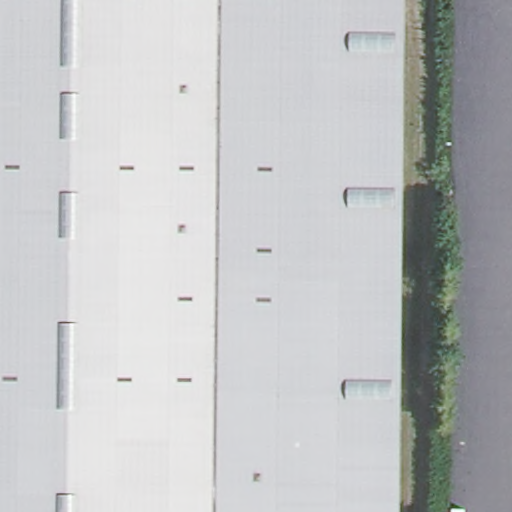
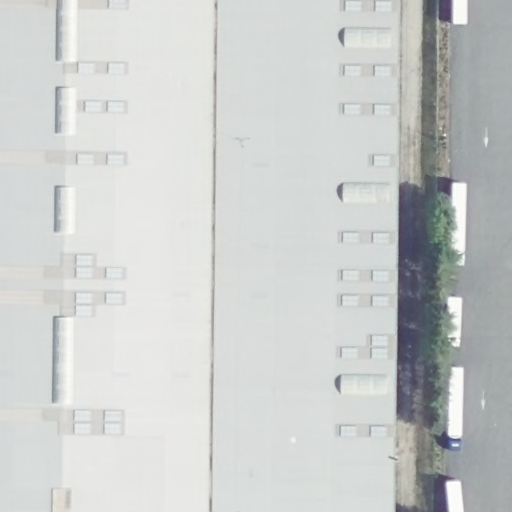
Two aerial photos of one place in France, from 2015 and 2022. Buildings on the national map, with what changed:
unchanged [(0,0),(395,0),(388,512),(0,512),(0,0)]

